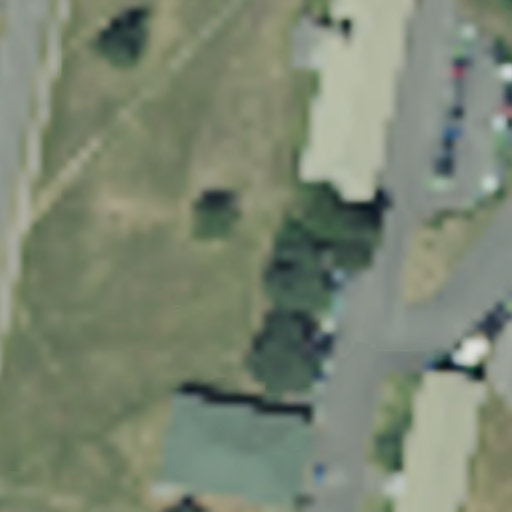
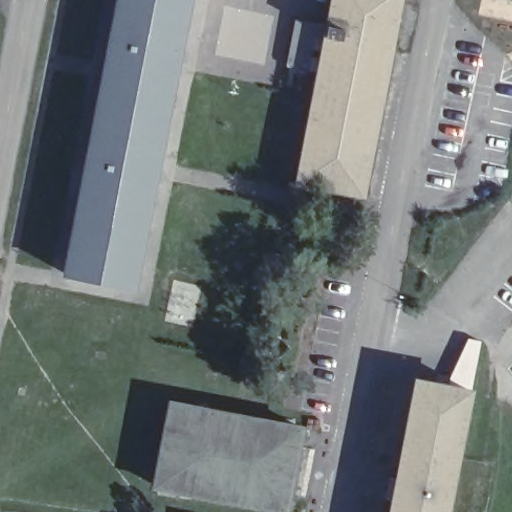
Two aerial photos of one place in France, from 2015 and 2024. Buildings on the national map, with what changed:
new [(57,278),(108,0),(192,0),(135,293),(57,278)]
unchanged [(290,179),(310,72),(285,64),(295,14),(322,20),(327,0),(402,0),(367,195),(290,179)]
demolished [(180,196),(138,189),(150,107),(190,119),(180,196)]
unchanged [(452,512),(383,512),(412,368),(475,380),(452,512)]
unchanged [(286,512),(274,512),(149,487),(168,390),(304,418),(286,512)]

